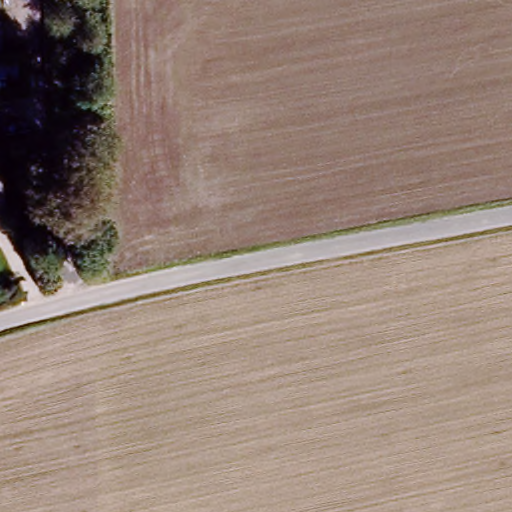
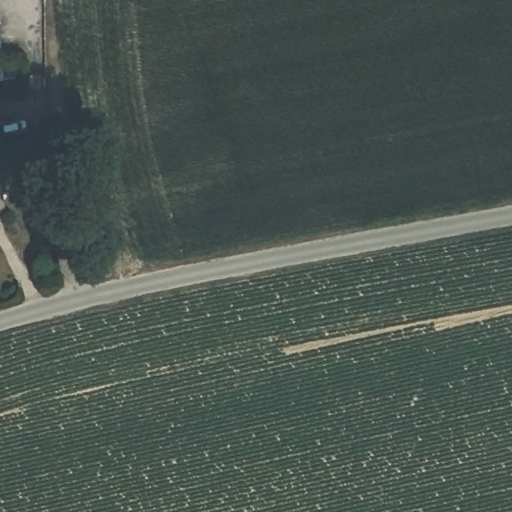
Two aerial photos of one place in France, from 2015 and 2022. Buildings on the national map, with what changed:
unchanged [(1,209),(0,209),(0,200),(1,209)]

